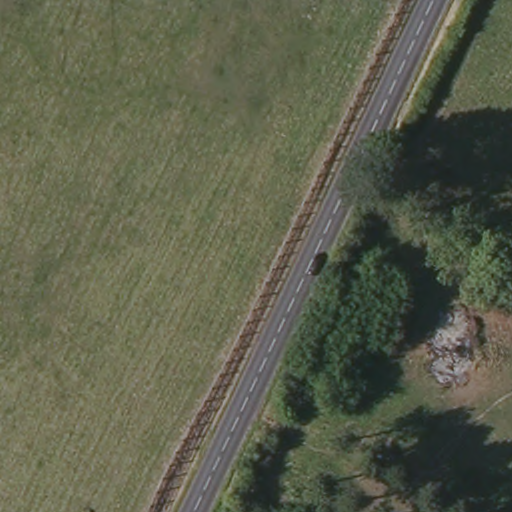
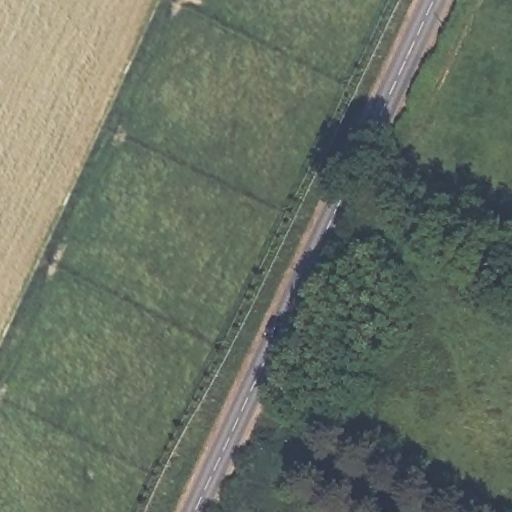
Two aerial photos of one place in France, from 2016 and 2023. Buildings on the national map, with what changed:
[]

